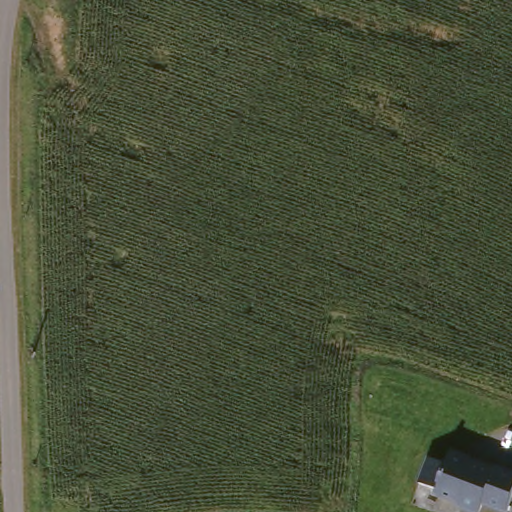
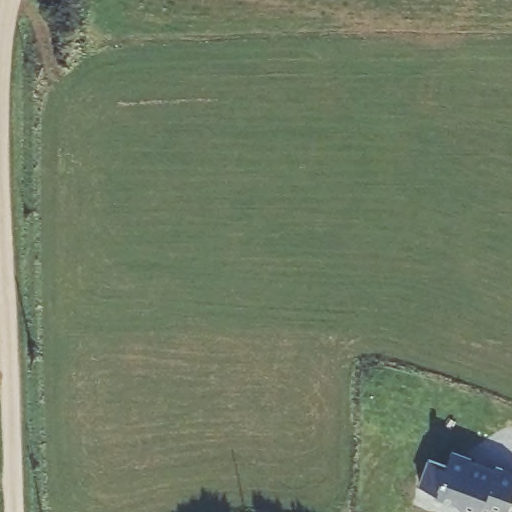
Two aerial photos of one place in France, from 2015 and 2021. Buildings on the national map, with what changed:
unchanged [(491,504),(471,500),(466,494),(444,489),(445,485),(426,481),(434,458),(456,462),(459,452),(478,455),(476,459),(501,465),(501,461),(512,464),(512,500),(494,495),(491,504)]

